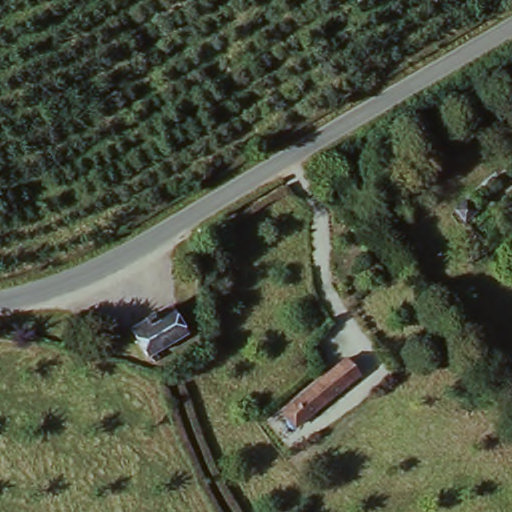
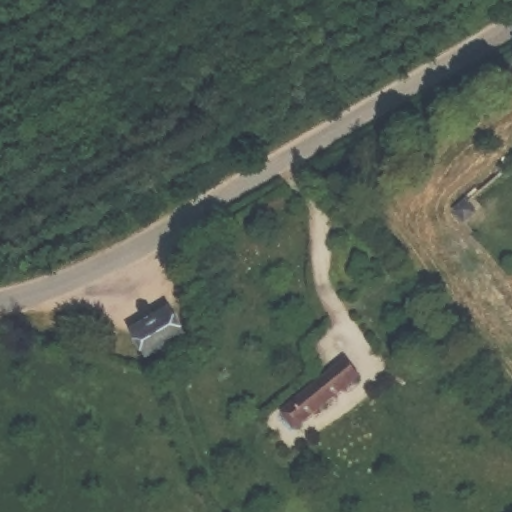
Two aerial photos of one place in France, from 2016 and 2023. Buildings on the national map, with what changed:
unchanged [(473,211),(462,220),(452,206),(462,198),(473,211)]
unchanged [(189,338),(146,360),(132,338),(147,330),(143,323),(157,313),(162,322),(176,313),(189,338)]
unchanged [(357,375),(293,427),(280,412),(345,359),(357,375)]

